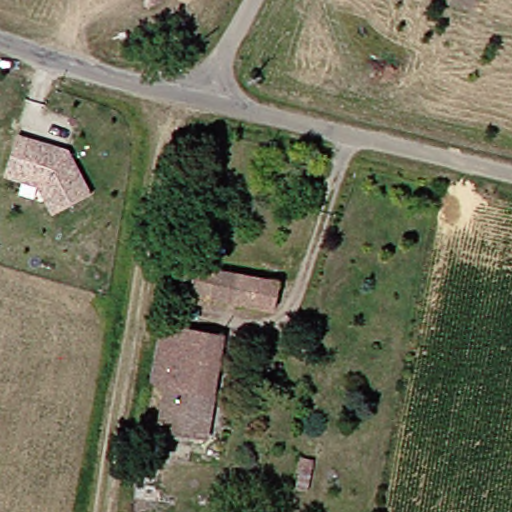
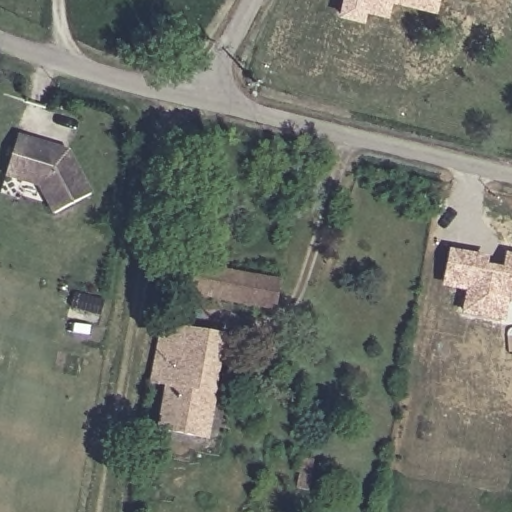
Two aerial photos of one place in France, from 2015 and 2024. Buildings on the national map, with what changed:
new [(392,4),(388,17),(362,11),(360,21),(337,16),(341,0),(438,0),(436,12),(392,4)]
unchanged [(97,191),(62,214),(49,189),(5,175),(15,139),(71,150),(97,191)]
new [(509,300),(504,323),(462,315),(466,291),(442,287),(450,249),(490,256),(488,265),(503,267),(506,252),(512,253),(512,301),(509,300)]
unchanged [(181,260),(265,287),(257,313),(172,285),(181,260)]
unchanged [(191,438),(150,431),(157,385),(143,383),(153,320),(217,331),(204,415),(200,439),(191,438)]
unchanged [(152,457),(175,461),(172,480),(150,477),(152,457)]

